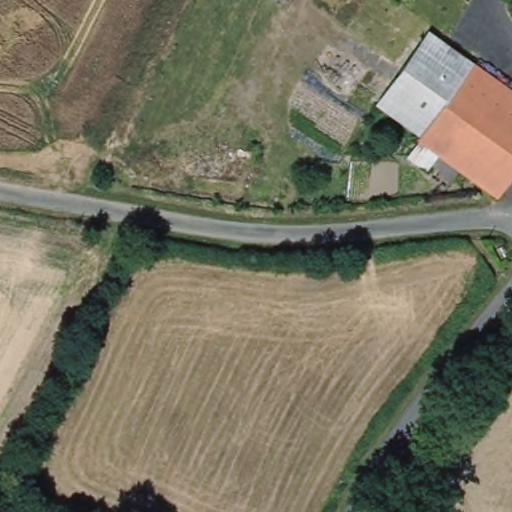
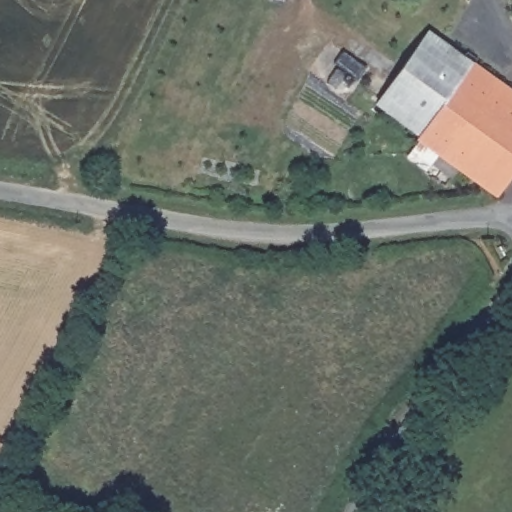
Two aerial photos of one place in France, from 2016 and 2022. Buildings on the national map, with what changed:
unchanged [(406,62),(431,30),(453,46),(454,46),(468,56),(418,130),(377,101),(402,67),(406,62)]
unchanged [(468,56),(512,88),(512,169),(495,192),(463,166),(454,176),(433,158),(438,152),(417,135),(418,130),(468,56)]

